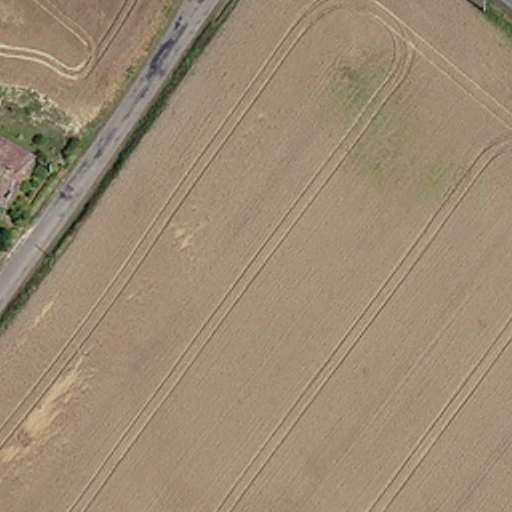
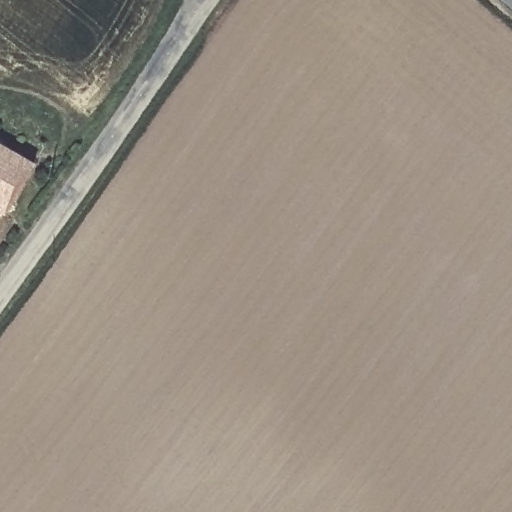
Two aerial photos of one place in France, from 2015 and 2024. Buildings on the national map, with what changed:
unchanged [(12,207),(0,201),(0,138),(39,160),(12,207)]

